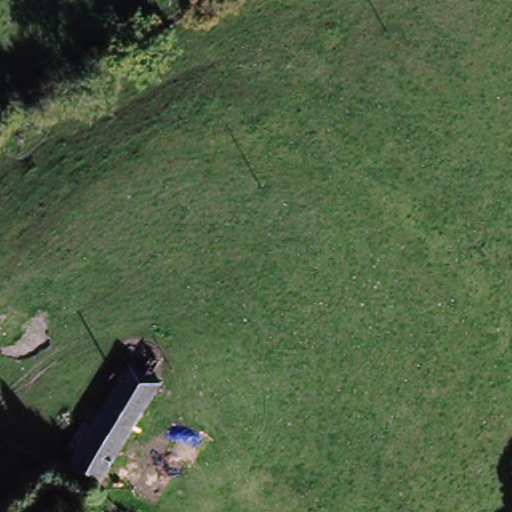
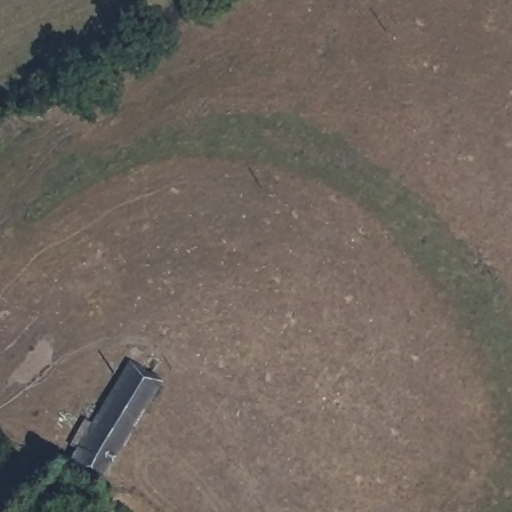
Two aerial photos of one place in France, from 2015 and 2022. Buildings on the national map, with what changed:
unchanged [(83,421),(93,428),(127,365),(132,368),(137,356),(148,362),(142,374),(156,382),(103,484),(100,490),(68,472),(56,467),(83,421)]

